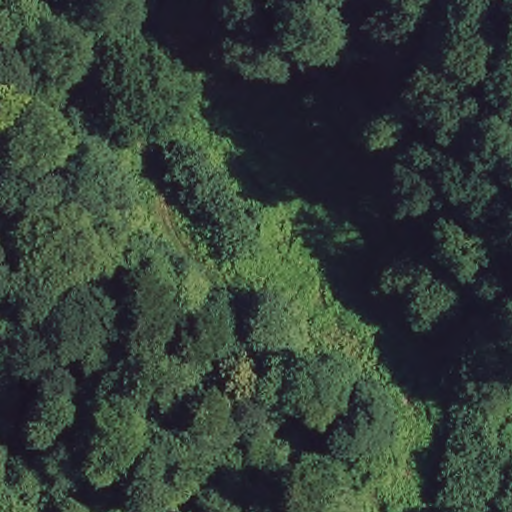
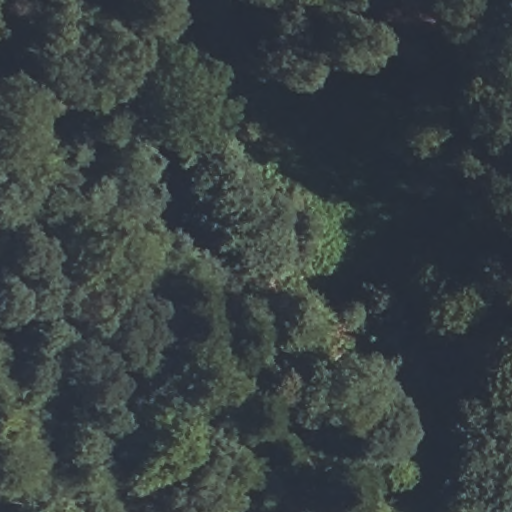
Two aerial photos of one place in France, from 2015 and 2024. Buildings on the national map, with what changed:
unchanged [(234,29),(249,45),(233,61),(217,45),(234,29)]

